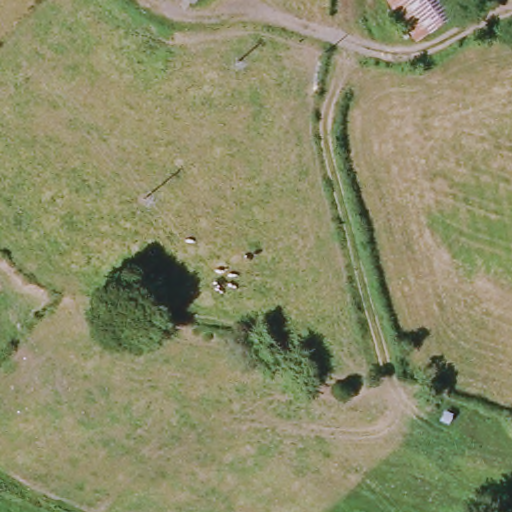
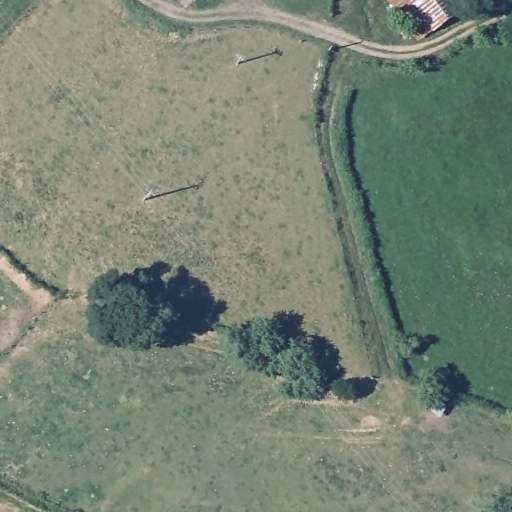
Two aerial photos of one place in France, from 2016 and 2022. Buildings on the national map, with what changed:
unchanged [(196,10),(185,0),(206,0),(196,10)]
unchanged [(377,8),(384,0),(464,0),(438,38),(425,45),(377,8)]

